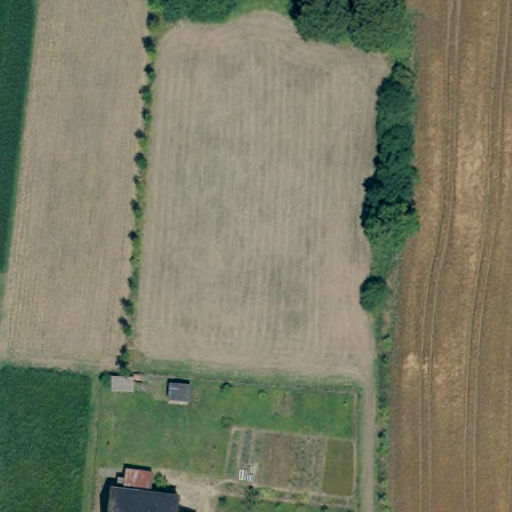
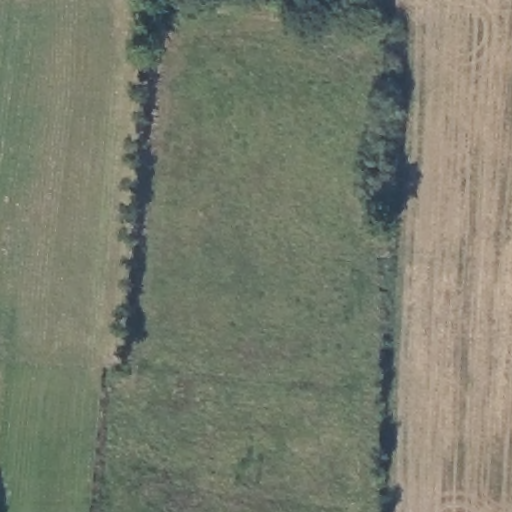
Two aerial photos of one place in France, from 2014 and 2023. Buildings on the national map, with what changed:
demolished [(119,475),(130,476),(131,486),(155,488),(183,493),(182,512),(115,512),(119,475)]

